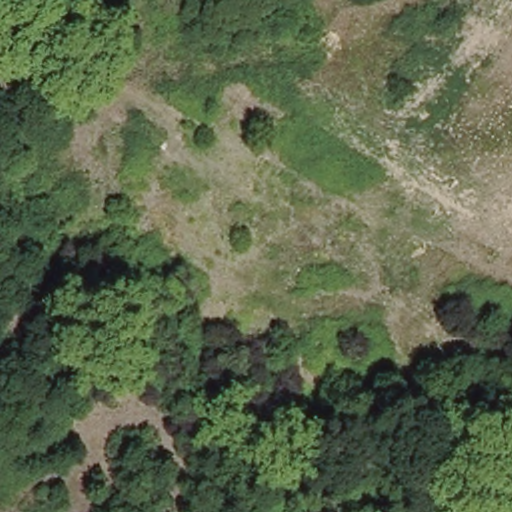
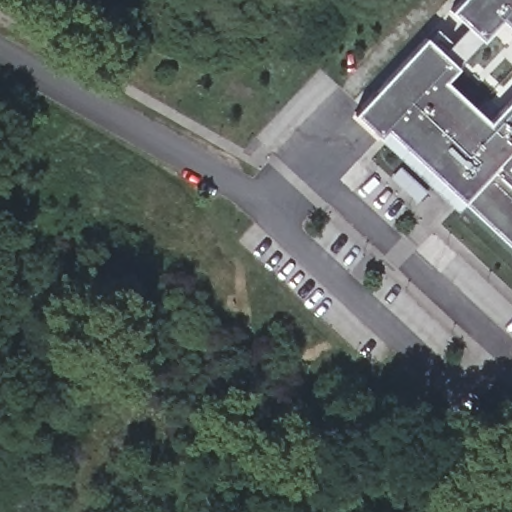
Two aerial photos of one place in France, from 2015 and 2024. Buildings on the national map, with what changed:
new [(512,0),(512,29),(503,21),(447,81),(490,120),(512,96),(512,247),(464,203),(457,210),(355,114),(461,0),(512,0)]
demolished [(325,214),(326,206),(332,200),(341,200),(343,217),(337,223),(329,221),(325,214)]

